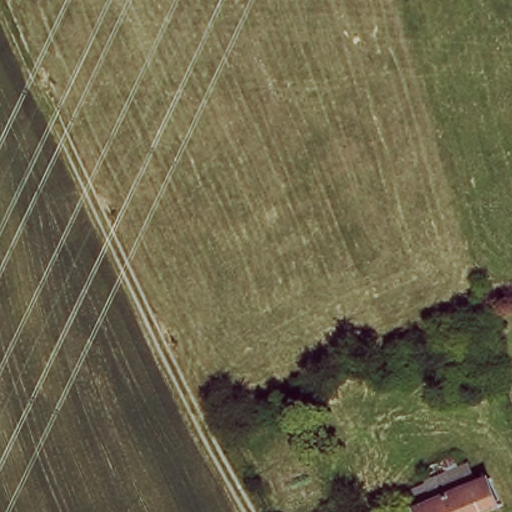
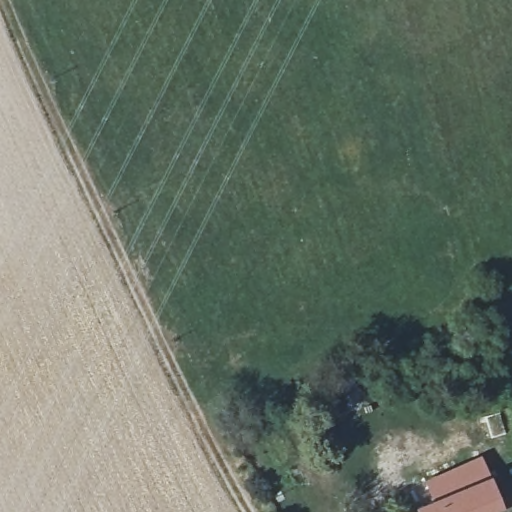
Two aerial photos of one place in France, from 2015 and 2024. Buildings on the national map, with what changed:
unchanged [(429,481),(423,468),(452,453),(457,465),(470,463),(473,480),(490,475),(508,505),(486,510),(488,512),(420,512),(415,503),(409,487),(429,481)]

